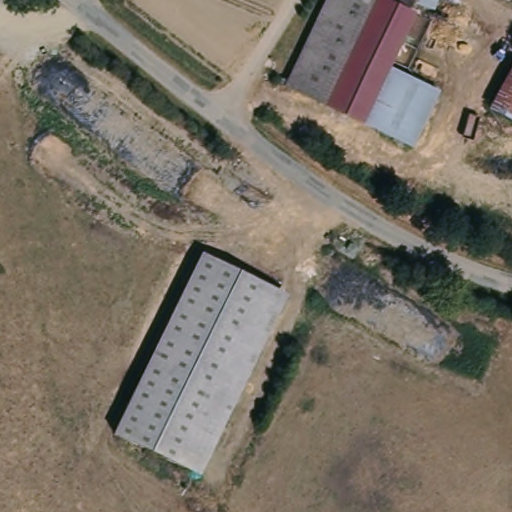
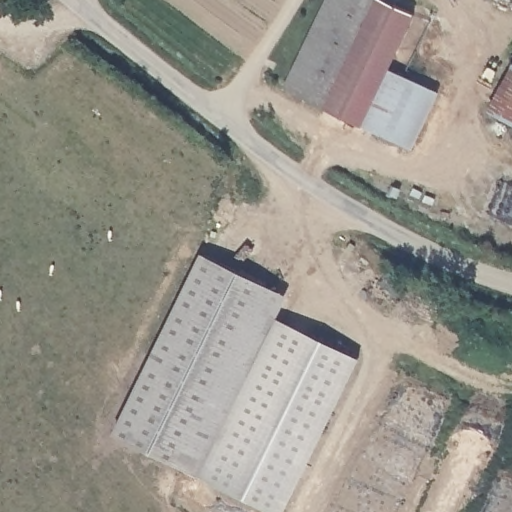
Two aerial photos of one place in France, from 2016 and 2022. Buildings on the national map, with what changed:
unchanged [(365,124),(286,89),(327,0),(391,0),(406,6),(404,13),(403,15),(401,21),(401,22),(415,27),(390,76),(365,124)]
demolished [(415,27),(401,22),(401,21),(403,15),(404,13),(406,6),(391,0),(425,0),(415,27)]
unchanged [(512,63),(512,122),(491,110),(512,63)]
unchanged [(397,138),(365,124),(390,76),(399,81),(421,91),(399,134),(397,138)]
unchanged [(210,257),(285,295),(197,470),(122,432),(210,257)]
new [(286,512),(279,512),(197,470),(274,316),(359,358),(286,512)]

